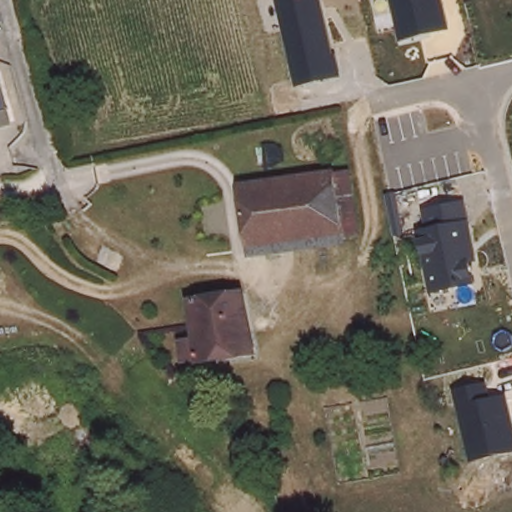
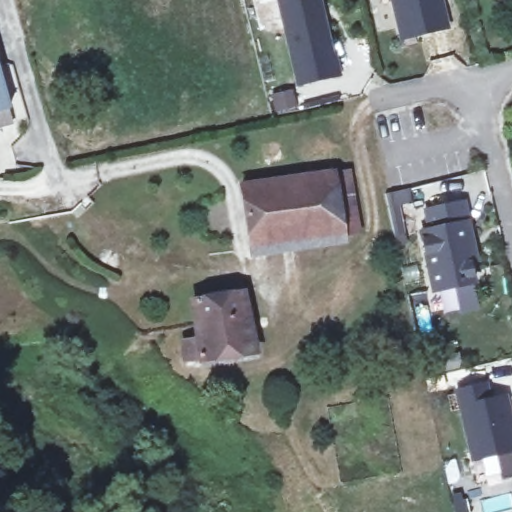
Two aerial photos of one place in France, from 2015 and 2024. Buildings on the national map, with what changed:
unchanged [(338,55),(344,78),(297,88),(277,0),(323,0),(334,55),(338,55)]
unchanged [(401,43),(391,0),(444,0),(451,30),(401,43)]
unchanged [(0,108),(0,57),(13,105),(0,108)]
unchanged [(342,170),(349,234),(334,236),(326,173),(342,170)]
unchanged [(282,179),(326,173),(334,236),(291,243),(282,179)]
unchanged [(291,243),(244,249),(236,186),(282,179),(291,243)]
unchanged [(481,262),(473,264),(477,285),(431,295),(419,230),(427,228),(424,209),(468,200),(481,262)]
unchanged [(190,296),(243,283),(252,323),(221,330),(219,324),(216,311),(195,316),(190,296)]
unchanged [(216,311),(219,324),(221,330),(252,323),(256,344),(204,357),(203,353),(186,357),(181,334),(199,330),(195,316),(216,311)]
unchanged [(454,389),(490,381),(494,395),(508,393),(512,410),(512,454),(469,464),(454,389)]

